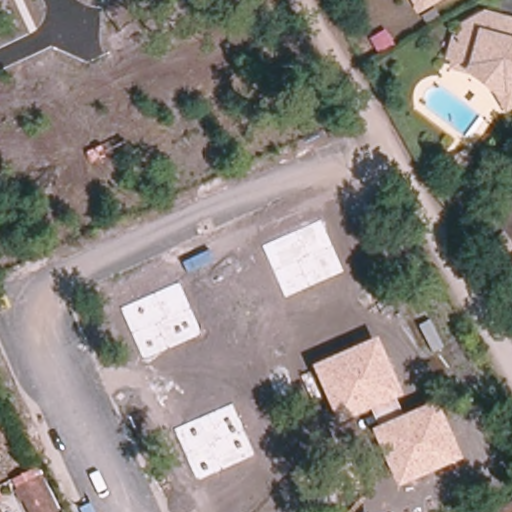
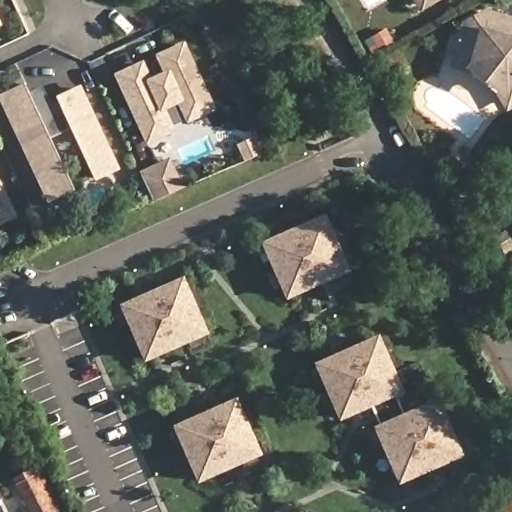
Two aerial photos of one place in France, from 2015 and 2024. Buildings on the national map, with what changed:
unchanged [(411,0),(440,0),(419,12),(411,0)]
unchanged [(507,84),(503,81),(480,64),(476,61),(479,47),(470,45),(460,42),(461,39),(465,22),(482,12),(504,18),(510,15),(512,15),(512,80),(507,84)]
new [(0,24),(1,25),(0,26),(0,24)]
unchanged [(510,101),(501,86),(498,91),(471,71),(474,67),(457,63),(458,57),(451,55),(456,37),(461,39),(460,42),(470,45),(479,47),(476,61),(480,64),(503,81),(507,84),(512,80),(512,100),(510,101)]
new [(112,75),(142,61),(149,78),(162,72),(154,56),(184,42),(216,111),(187,125),(185,122),(174,128),(175,131),(146,145),(112,75)]
new [(0,94),(22,85),(26,94),(42,87),(50,104),(56,102),(55,99),(81,85),(119,169),(92,181),(68,130),(49,140),(72,191),(46,204),(0,105),(0,94)]
new [(164,162),(171,178),(177,190),(149,202),(137,175),(155,166),(164,162)]
new [(0,185),(16,218),(0,225),(0,185)]
new [(348,273),(283,301),(259,244),(323,216),(348,273)]
demolished [(127,247),(141,240),(154,270),(140,276),(127,247)]
demolished [(97,260),(112,254),(125,282),(111,289),(97,260)]
new [(142,365),(117,306),(182,278),(207,335),(142,365)]
unchanged [(395,397),(402,412),(435,398),(462,458),(395,487),(369,427),(373,425),(367,410),(336,425),(311,365),(377,335),(402,394),(395,397)]
new [(260,457),(196,484),(171,428),(235,398),(260,457)]
unchanged [(37,470),(56,512),(25,512),(11,481),(37,470)]
unchanged [(512,504),(512,512),(496,512),(512,504)]

